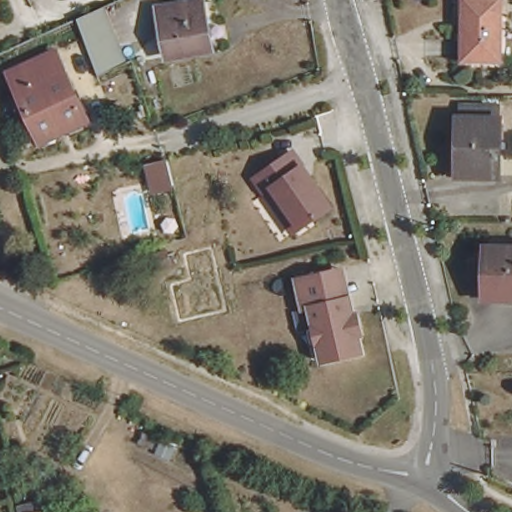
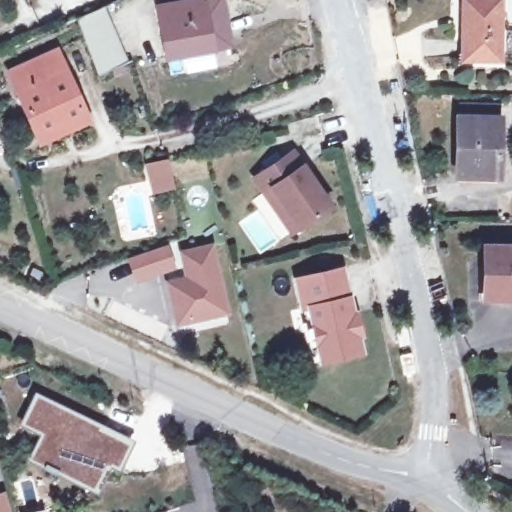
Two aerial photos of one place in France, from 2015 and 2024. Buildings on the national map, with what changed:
unchanged [(153,8),(197,0),(211,0),(219,47),(162,57),(153,8)]
unchanged [(464,0),(501,0),(501,57),(460,57),(460,34),(464,34),(464,0)]
unchanged [(82,21),(106,10),(128,64),(103,74),(82,21)]
unchanged [(39,139),(11,72),(58,52),(88,123),(69,132),(41,144),(39,139)]
unchanged [(458,119),(501,120),(501,178),(457,177),(458,119)]
unchanged [(253,173),(291,147),(301,162),(308,172),(328,202),(298,223),(289,229),(262,188),(253,173)]
unchanged [(148,180),(146,170),(167,165),(169,175),(173,190),(151,195),(148,180)]
new [(191,278),(186,252),(213,246),(228,311),(181,322),(172,282),(191,278)]
new [(133,260),(166,249),(173,267),(139,280),(133,260)]
unchanged [(512,253),(512,298),(487,298),(486,253),(512,253)]
unchanged [(318,348),(308,307),(301,309),(295,282),(316,277),(332,273),(341,271),(348,300),(352,317),(356,316),(360,337),(356,337),(360,355),(337,360),(329,362),(321,363),(318,348)]
new [(28,462),(40,436),(19,426),(34,393),(134,439),(120,472),(111,468),(98,495),(28,462)]
new [(0,512),(0,492),(4,491),(11,512),(0,512)]
new [(34,512),(43,510),(44,512),(34,512)]

